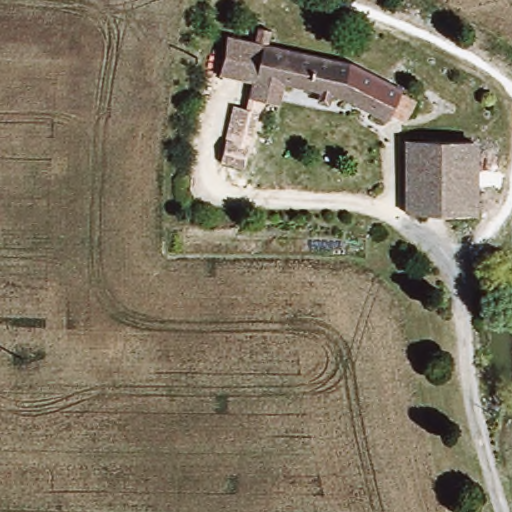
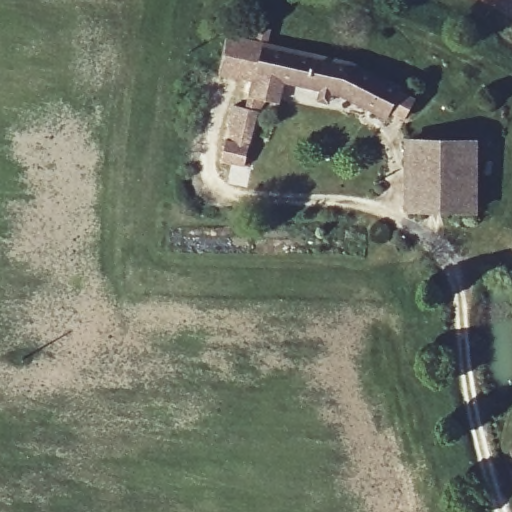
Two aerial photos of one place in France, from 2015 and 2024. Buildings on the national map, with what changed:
unchanged [(321,106),(327,92),(292,82),(283,100),(267,98),(247,138),(239,159),(219,155),(215,145),(234,90),(245,94),(251,74),(222,66),(232,30),(252,35),(257,17),(275,22),(272,32),(358,56),(393,81),(417,110),(403,122),(397,117),(390,125),(344,100),(338,114),(321,106)]
unchanged [(479,206),(416,207),(415,138),(480,138),(479,206)]

